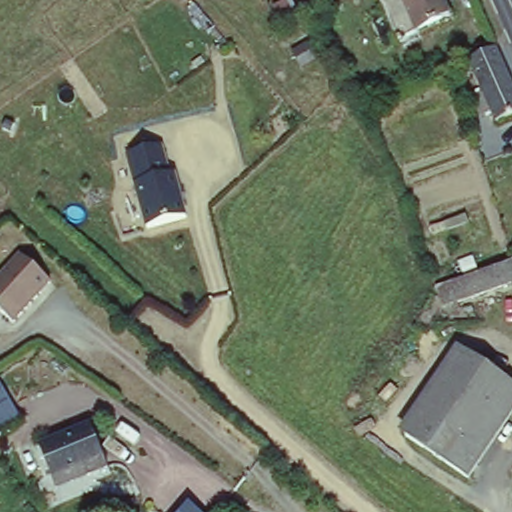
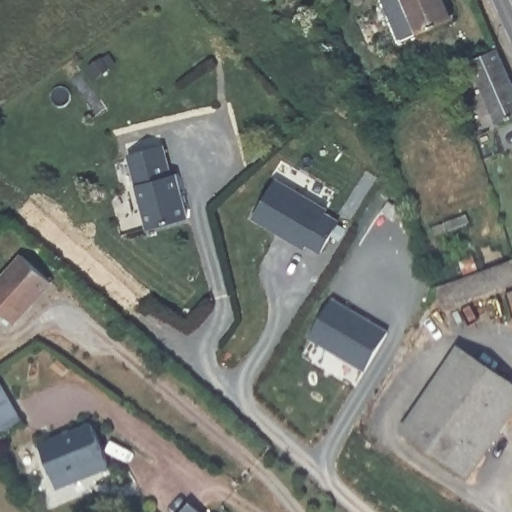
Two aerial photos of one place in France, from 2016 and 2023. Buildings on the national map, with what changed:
unchanged [(446,11),(415,23),(393,34),(379,0),(442,0),(446,11)]
unchanged [(512,116),(495,123),(465,58),(492,45),(512,90),(512,116)]
unchanged [(164,145),(170,175),(176,174),(187,217),(146,228),(127,154),(164,145)]
new [(275,179),(326,210),(325,214),(338,222),(320,252),(306,244),(305,248),(253,217),(275,179)]
unchanged [(26,253),(55,282),(15,321),(0,306),(0,278),(26,253)]
unchanged [(512,266),(512,281),(435,305),(428,286),(510,261),(512,266)]
new [(331,300),(386,334),(364,372),(308,338),(331,300)]
unchanged [(512,386),(512,408),(463,479),(398,432),(455,349),(512,386)]
unchanged [(21,451),(12,434),(0,442),(0,377),(31,421),(25,425),(35,444),(21,451)]
unchanged [(50,478),(35,443),(87,421),(105,463),(85,471),(53,485),(50,478)]
unchanged [(198,512),(183,512),(190,504),(198,512)]

